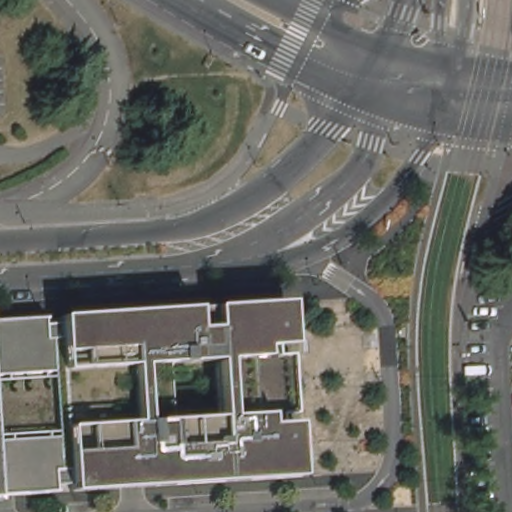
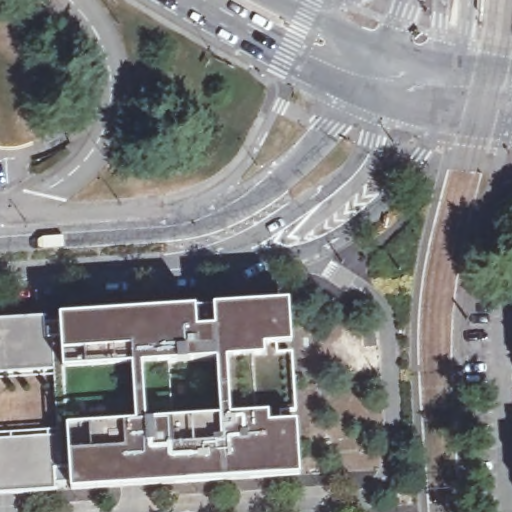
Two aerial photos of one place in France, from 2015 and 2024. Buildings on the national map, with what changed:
unchanged [(51,322),(50,315),(53,315),(104,312),(154,309),(204,305),(254,302),(255,322),(255,324),(267,323),(276,476),(142,485),(73,489),(62,490),(61,483),(52,342),(51,322)]
unchanged [(36,323),(51,322),(52,342),(61,483),(46,485),(47,491),(27,492),(0,494),(0,319),(35,316),(36,323)]
unchanged [(281,322),(285,388),(291,475),(276,476),(267,323),(281,322)]

